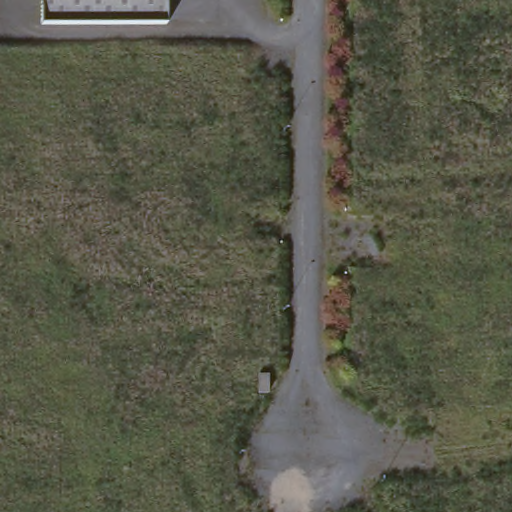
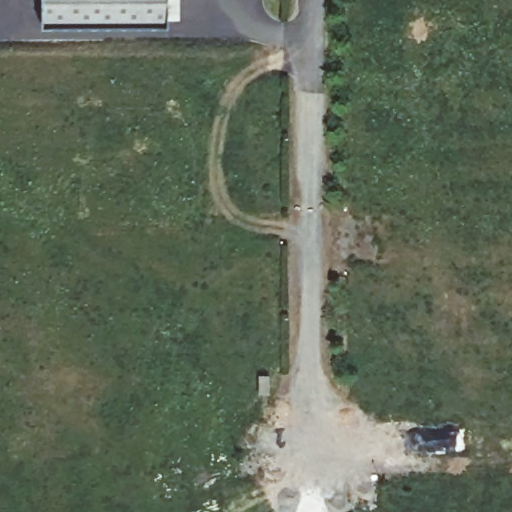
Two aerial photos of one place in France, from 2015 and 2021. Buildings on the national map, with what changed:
unchanged [(38,22),(39,0),(166,0),(166,24),(38,22)]

